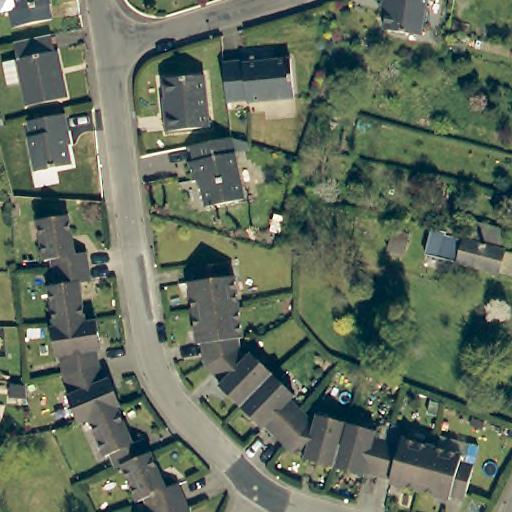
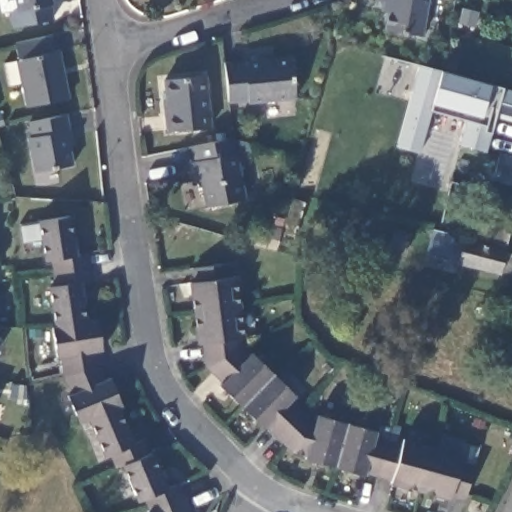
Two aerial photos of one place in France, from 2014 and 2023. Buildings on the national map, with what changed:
unchanged [(10,6),(2,7),(0,0),(51,0),(52,6),(54,13),(13,22),(10,6)]
unchanged [(383,6),(379,5),(380,0),(430,0),(423,39),(387,32),(390,17),(382,15),(383,6)]
unchanged [(64,60),(74,105),(35,114),(29,91),(15,94),(9,71),(23,67),(20,52),(57,43),(61,60),(64,60)]
unchanged [(241,59),(258,56),(258,58),(271,57),(271,60),(288,57),(294,96),(248,103),(247,100),(227,104),(222,65),(242,62),(241,59)]
new [(491,115),(486,131),(491,134),(485,154),(456,146),(464,120),(431,111),(419,154),(395,147),(417,65),(438,70),(489,84),(512,90),(512,121),(491,115)]
unchanged [(208,129),(166,134),(165,117),(167,117),(164,84),(202,80),(208,129)]
unchanged [(30,142),(32,141),(29,123),(65,116),(68,134),(66,135),(72,166),(37,174),(30,142)]
unchanged [(236,144),(237,145),(245,204),(208,209),(205,182),(197,183),(194,165),(199,164),(197,149),(236,144)]
unchanged [(103,351),(97,352),(101,368),(106,380),(110,378),(122,408),(118,411),(132,445),(142,442),(147,455),(151,453),(166,490),(175,485),(186,512),(150,512),(145,500),(139,502),(123,465),(116,467),(111,455),(104,457),(89,422),(81,425),(69,395),(73,393),(66,375),(63,357),(58,357),(54,327),(56,326),(52,288),(60,287),(56,257),(48,258),(44,220),(74,217),(78,255),(91,254),(94,282),(82,284),(87,323),(98,322),(103,351)]
unchanged [(465,241),(470,224),(509,234),(505,251),(465,241)]
unchanged [(499,276),(425,258),(432,232),(448,236),(447,240),(505,256),(512,257),(512,279),(499,276)]
unchanged [(419,243),(413,262),(398,257),(403,239),(419,243)]
unchanged [(227,265),(227,277),(234,277),(239,338),(234,340),(236,351),(242,357),(247,353),(290,397),(287,402),(305,421),(310,422),(312,417),(371,435),(370,439),(394,446),(396,442),(454,460),(453,463),(467,467),(457,501),(444,498),(442,501),(384,485),(385,481),(359,473),(357,477),(298,459),(298,455),(285,452),(261,426),(258,427),(216,384),(219,381),(203,365),(200,342),(196,342),(189,281),(195,281),(194,267),(227,265)]

